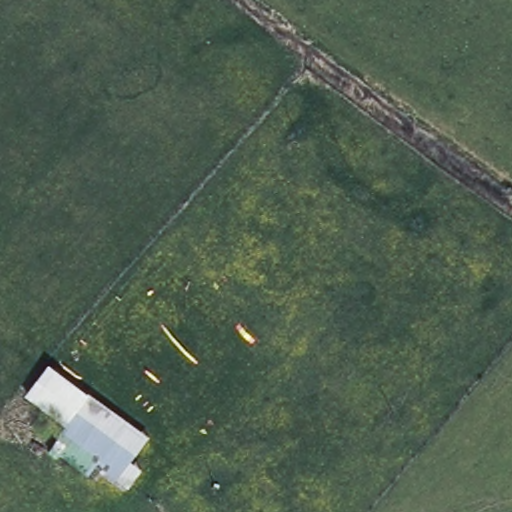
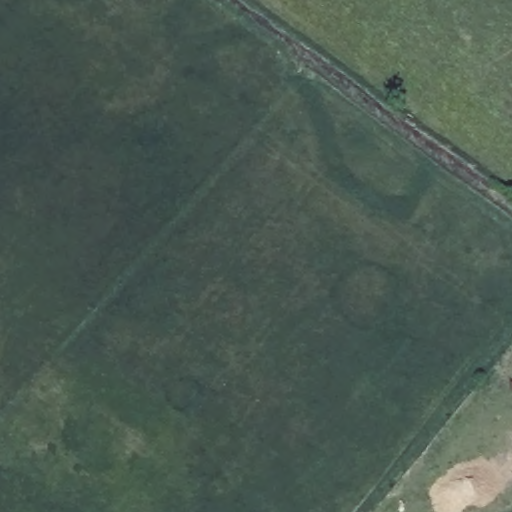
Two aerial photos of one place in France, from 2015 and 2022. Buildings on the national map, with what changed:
demolished [(49,449),(65,424),(27,396),(50,364),(155,434),(135,458),(147,467),(132,485),(106,472),(95,479),(49,449)]

